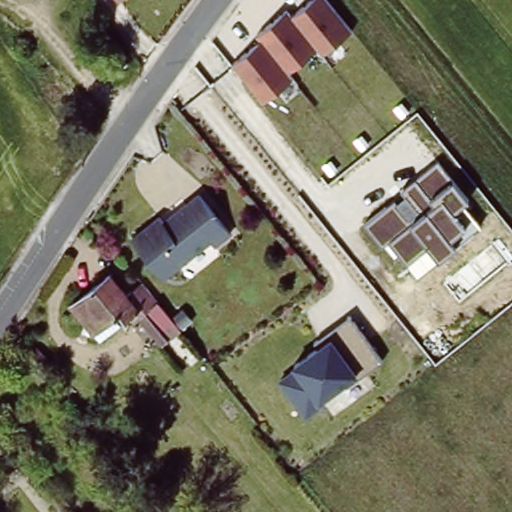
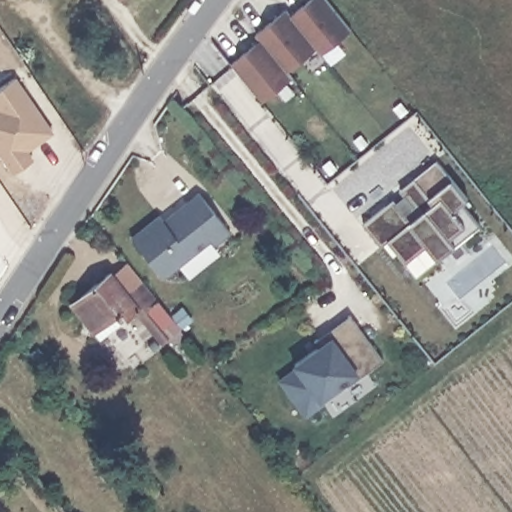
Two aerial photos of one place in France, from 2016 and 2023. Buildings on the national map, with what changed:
unchanged [(324,50),(321,46),(287,72),(290,76),(264,99),(233,64),(262,43),(256,34),(288,8),(294,15),(311,0),(329,0),(353,26),(324,50)]
new [(38,160),(19,173),(0,147),(0,91),(18,77),(55,131),(30,150),(38,160)]
unchanged [(468,195),(462,200),(479,224),(439,259),(426,244),(404,261),(398,256),(393,261),(364,223),(394,198),(401,207),(410,200),(402,188),(436,161),(468,195)]
unchanged [(155,215),(161,223),(169,218),(168,216),(196,193),(226,231),(212,244),(208,239),(161,277),(129,237),(155,215)]
unchanged [(80,303),(110,280),(125,300),(140,288),(148,298),(179,336),(165,347),(143,319),(137,324),(133,318),(95,346),(90,339),(69,311),(80,303)]
unchanged [(379,359),(346,385),(343,382),(319,396),(326,403),(305,417),(277,377),(292,367),(290,365),(329,337),(326,332),(351,318),(379,359)]

